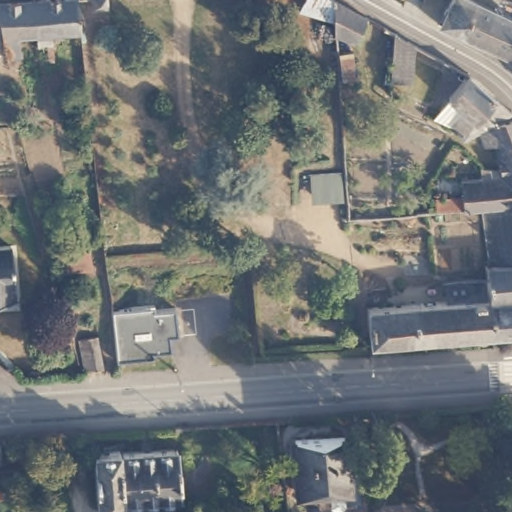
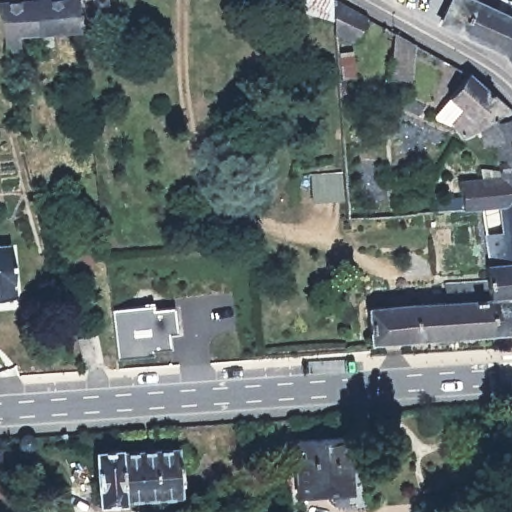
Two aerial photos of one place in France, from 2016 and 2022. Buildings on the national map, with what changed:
unchanged [(22,54),(8,56),(0,23),(0,0),(5,0),(33,0),(37,31),(19,34),(22,54)]
unchanged [(52,40),(39,42),(37,31),(33,0),(76,0),(78,25),(50,30),(52,40)]
unchanged [(92,0),(105,0),(105,4),(93,5),(92,0)]
unchanged [(292,10),(297,0),(341,0),(363,12),(358,36),(363,81),(340,80),(331,31),(292,10)]
unchanged [(448,0),(472,0),(480,0),(512,14),(512,31),(503,51),(474,37),(457,30),(439,21),(448,0)]
unchanged [(389,80),(396,30),(415,41),(409,82),(389,80)]
unchanged [(512,31),(512,62),(503,51),(512,31)]
unchanged [(501,117),(487,124),(482,125),(478,127),(462,135),(461,135),(452,125),(465,111),(448,95),(467,71),(512,111),(501,117)]
unchanged [(500,165),(497,139),(485,142),(478,127),(482,125),(487,124),(512,116),(512,167),(500,167),(500,165)]
unchanged [(483,205),(466,207),(466,205),(437,209),(436,196),(464,194),(462,176),(494,173),(493,165),(500,165),(500,167),(512,167),(512,203),(498,204),(483,205)]
unchanged [(483,205),(498,204),(512,203),(512,260),(489,263),(483,205)]
unchanged [(11,246),(14,299),(0,300),(0,247),(11,246)]
unchanged [(487,277),(486,263),(489,263),(512,260),(512,329),(492,330),(487,277)]
unchanged [(371,337),(367,306),(449,298),(448,280),(487,277),(492,330),(371,337)]
unchanged [(367,297),(366,287),(374,286),(375,296),(367,297)]
unchanged [(172,324),(174,349),(154,351),(155,356),(116,360),(110,307),(157,303),(158,307),(179,305),(180,323),(172,324)]
unchanged [(98,333),(103,365),(87,367),(81,336),(98,333)]
unchanged [(30,443),(29,444),(28,445),(24,446),(22,445),(21,444),(20,443),(20,442),(19,441),(19,440),(19,439),(19,438),(20,436),(20,435),(22,434),(24,433),(25,433),(27,433),(28,434),(29,435),(31,437),(31,438),(31,440),(31,442),(30,443)]
unchanged [(345,435),(348,487),(299,490),(295,437),(345,435)]
unchanged [(124,497),(124,501),(98,502),(94,449),(120,447),(120,450),(176,446),(180,494),(124,497)]

